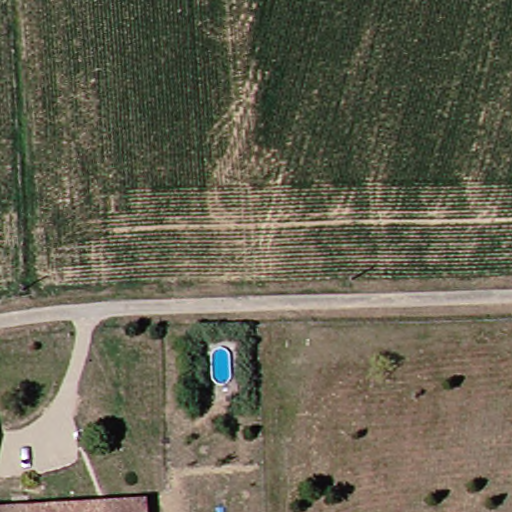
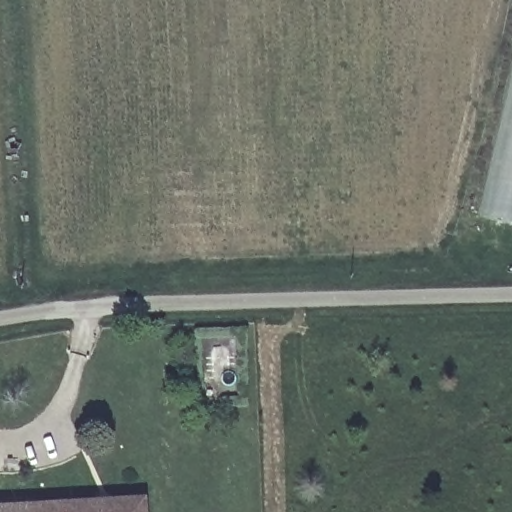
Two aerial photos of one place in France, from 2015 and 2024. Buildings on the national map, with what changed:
new [(479,217),(512,74),(512,224),(479,217)]
unchanged [(0,510),(130,502),(131,512),(0,512),(0,510)]

